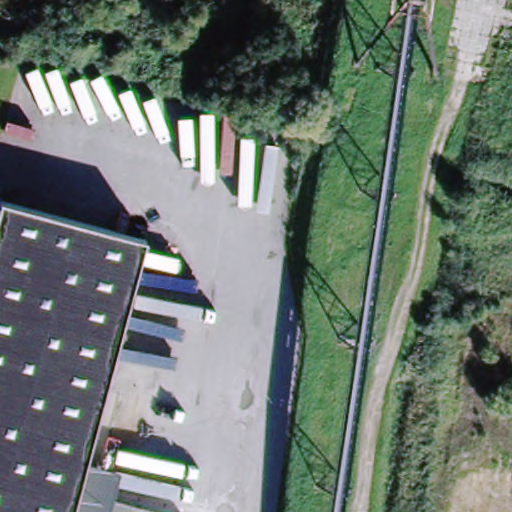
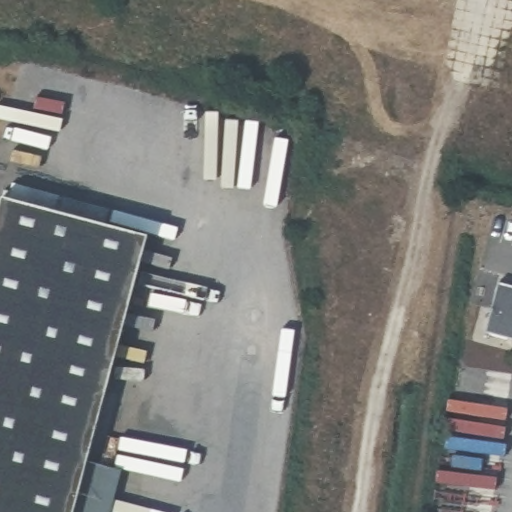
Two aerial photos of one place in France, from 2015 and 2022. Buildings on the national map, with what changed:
unchanged [(0,200),(145,240),(73,512),(0,512),(0,200)]
new [(501,276),(512,278),(512,332),(488,325),(501,276)]

